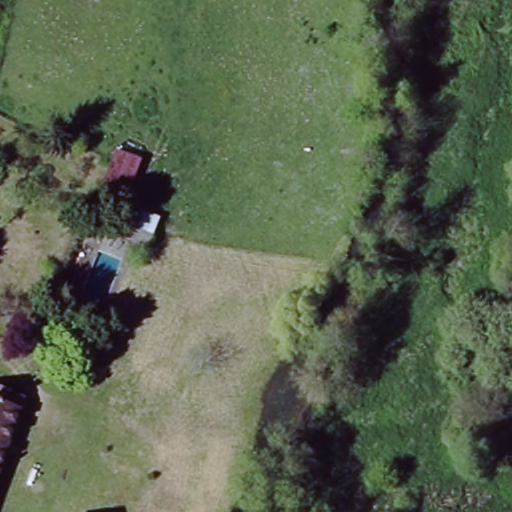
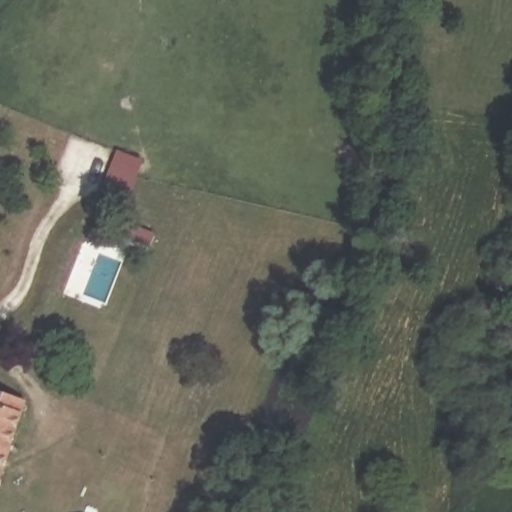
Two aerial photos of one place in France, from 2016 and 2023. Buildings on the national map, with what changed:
unchanged [(116,237),(125,210),(145,217),(140,230),(160,236),(156,251),(116,237)]
unchanged [(0,492),(0,395),(30,405),(0,492)]

